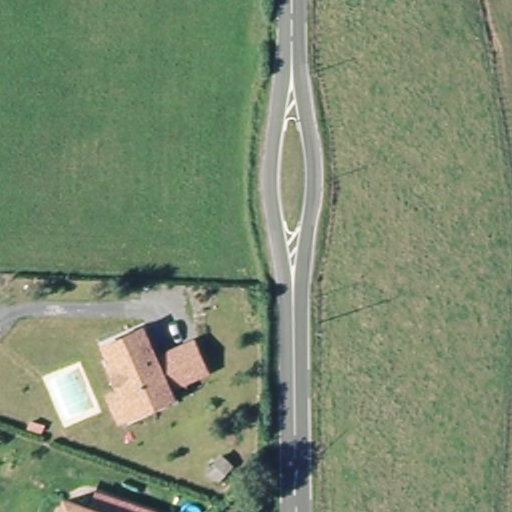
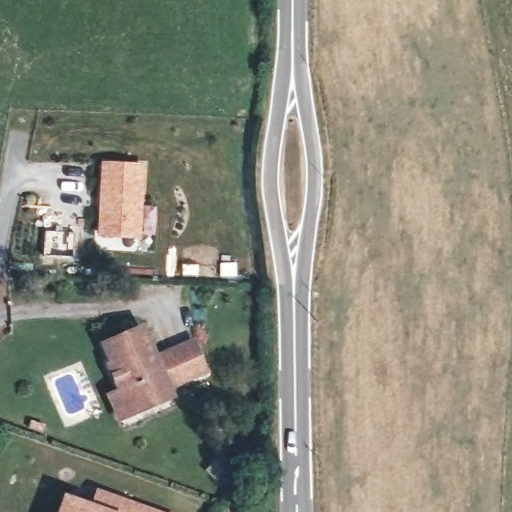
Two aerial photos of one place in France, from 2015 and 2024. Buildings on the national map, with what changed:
new [(145,164),(141,239),(96,236),(101,161),(145,164)]
unchanged [(116,395),(127,390),(115,364),(118,362),(109,344),(145,327),(159,357),(196,338),(209,365),(173,384),(177,392),(141,410),(127,417),(116,395)]
unchanged [(63,500),(88,509),(93,494),(118,503),(115,512),(59,512),(63,500)]
unchanged [(162,512),(126,512),(129,499),(162,512)]

